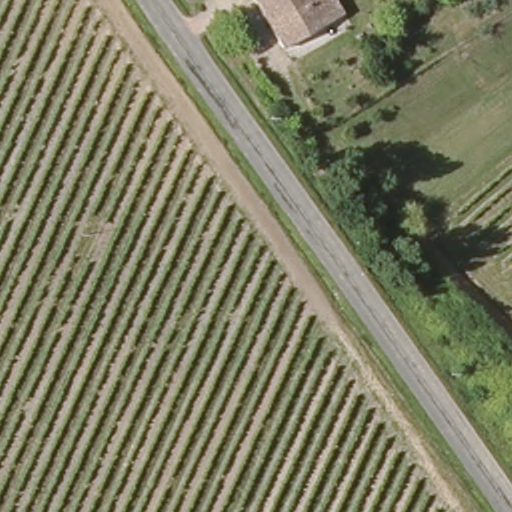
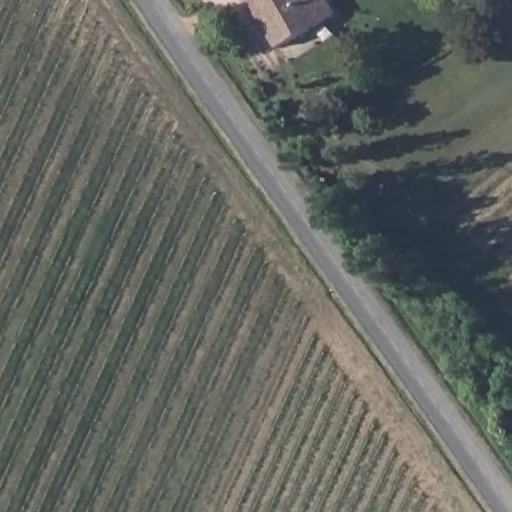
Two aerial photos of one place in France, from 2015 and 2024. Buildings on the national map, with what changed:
unchanged [(246,0),(330,0),(338,15),(273,53),(246,0)]

